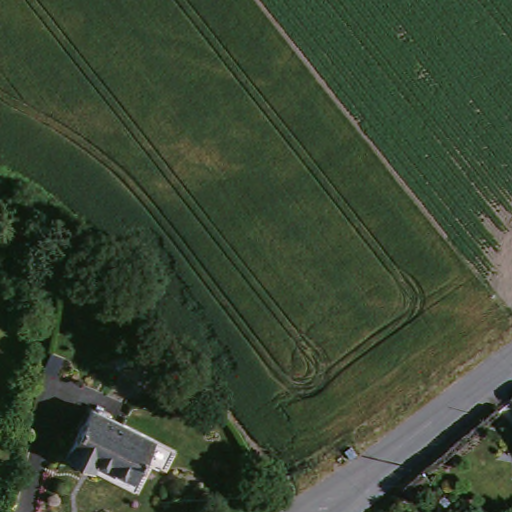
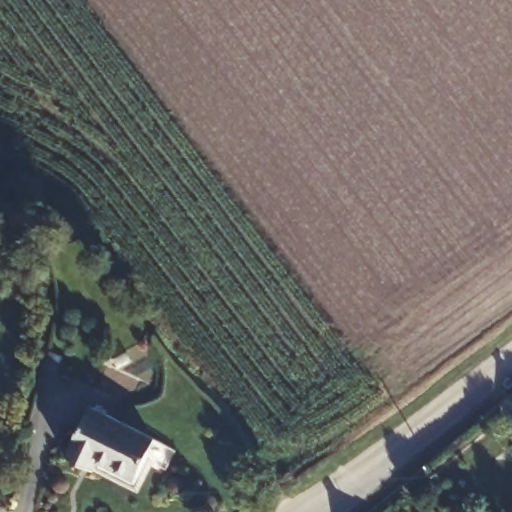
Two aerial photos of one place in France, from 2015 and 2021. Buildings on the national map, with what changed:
unchanged [(154,436),(131,486),(69,458),(93,408),(154,436)]

